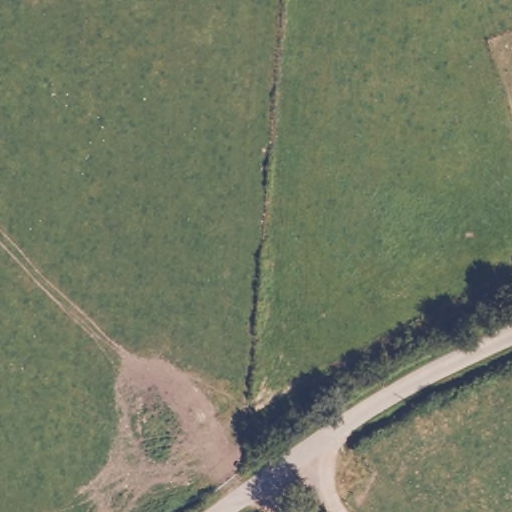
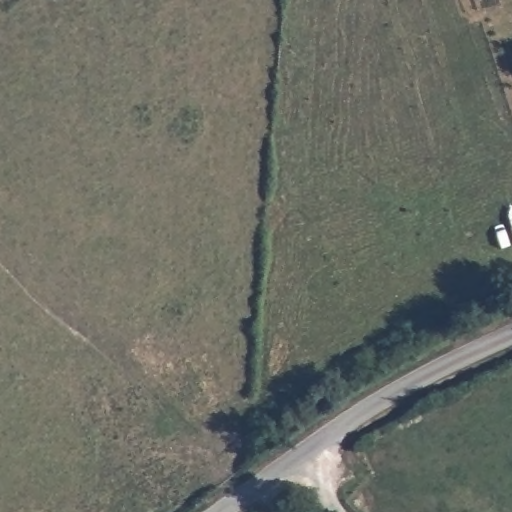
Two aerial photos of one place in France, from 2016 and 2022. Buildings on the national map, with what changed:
[]

